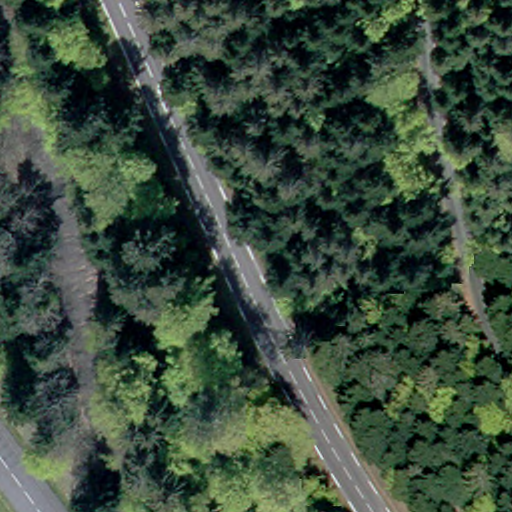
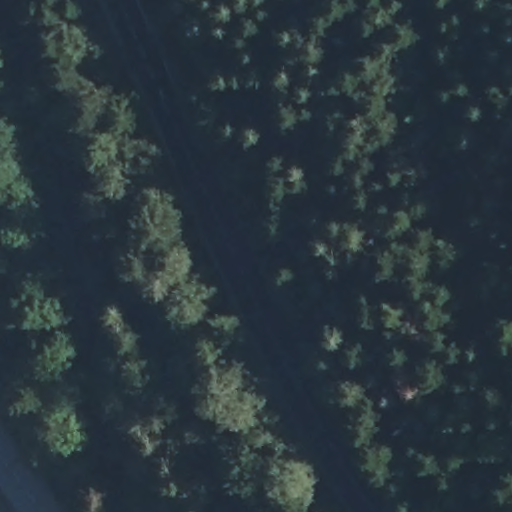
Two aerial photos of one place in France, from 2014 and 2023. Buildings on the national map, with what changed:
[]

